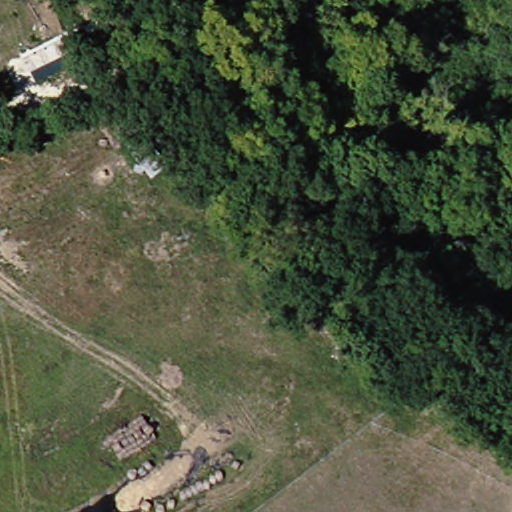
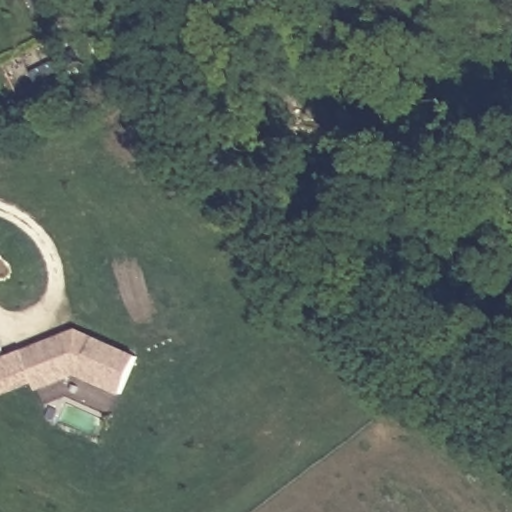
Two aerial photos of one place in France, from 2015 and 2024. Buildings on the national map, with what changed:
new [(31,385),(20,355),(62,338),(75,333),(86,337),(136,359),(119,396),(73,376),(34,392),(31,385)]

